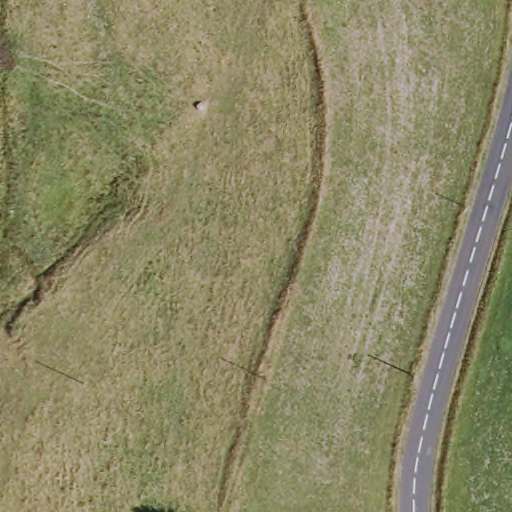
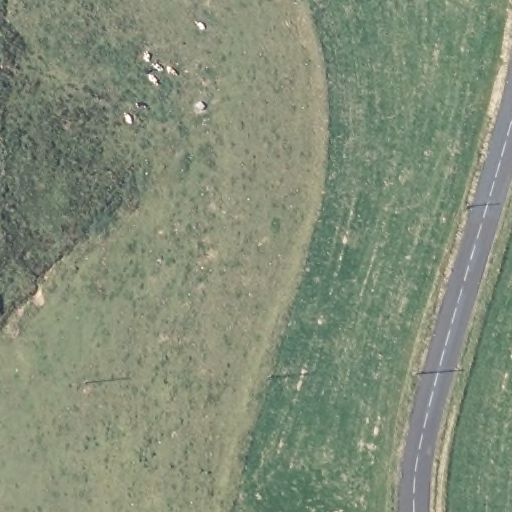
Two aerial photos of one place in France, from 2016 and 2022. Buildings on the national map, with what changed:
[]

